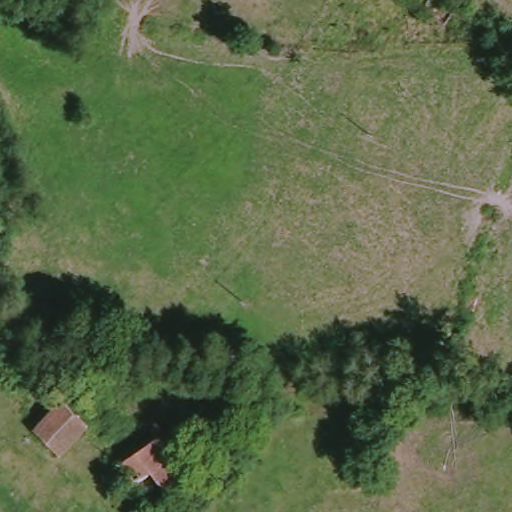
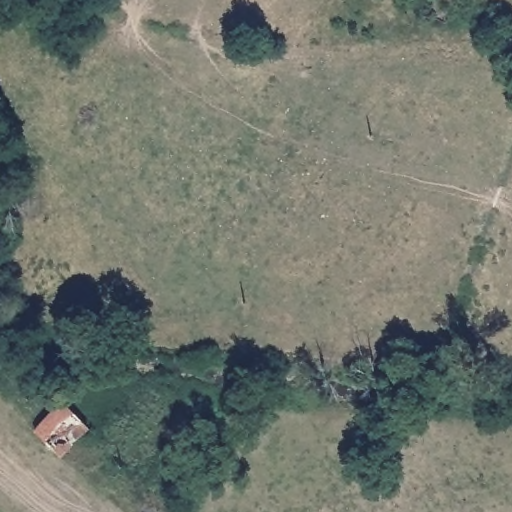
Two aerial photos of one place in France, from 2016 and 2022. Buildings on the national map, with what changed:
unchanged [(93,431),(63,457),(37,432),(66,405),(93,431)]
unchanged [(163,512),(155,512),(125,467),(167,438),(199,483),(163,512)]

